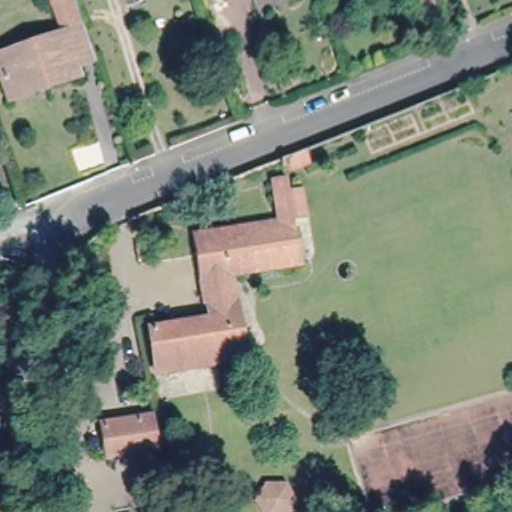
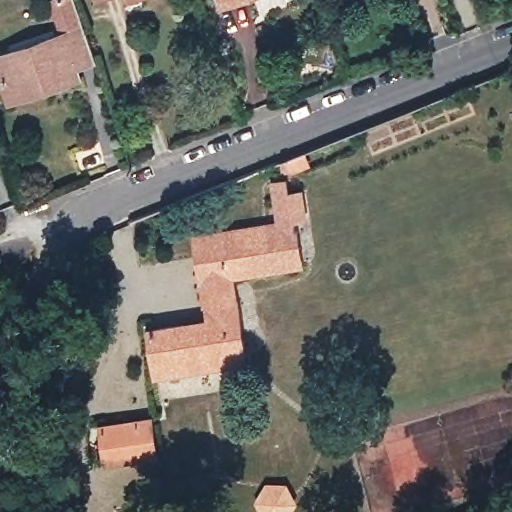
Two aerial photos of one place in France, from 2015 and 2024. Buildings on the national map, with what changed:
unchanged [(60,40),(47,6),(61,0),(71,0),(82,31),(94,65),(73,73),(76,83),(51,92),(49,84),(5,100),(0,86),(0,62),(3,60),(60,40)]
unchanged [(225,0),(228,0),(225,1),(225,0)]
unchanged [(145,330),(204,321),(191,235),(275,223),(272,204),(273,204),(270,182),(282,181),(285,195),(297,193),(301,219),(289,220),(296,266),(227,276),(240,361),(151,375),(145,330)]
unchanged [(102,426),(150,419),(155,452),(107,459),(102,426)]

